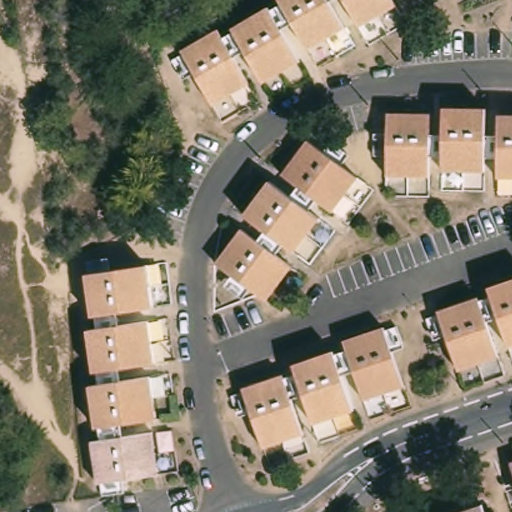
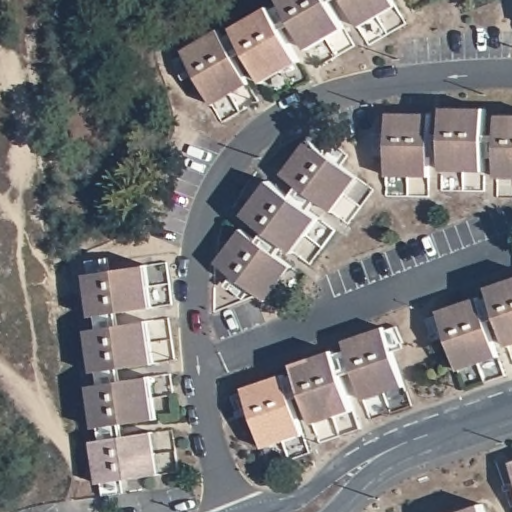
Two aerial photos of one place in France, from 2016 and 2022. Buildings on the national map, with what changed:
unchanged [(300,49),(272,0),(273,0),(321,0),(337,27),(340,31),(304,54),(300,49)]
unchanged [(351,27),(336,0),(385,0),(388,5),(391,11),(355,33),(351,27)]
unchanged [(258,89),(255,82),(225,33),(262,12),(292,61),(295,66),(258,89)]
unchanged [(207,110),(205,105),(175,56),(212,34),(241,83),(244,90),(207,110)]
unchanged [(437,176),(437,169),(437,114),(480,114),(480,169),(480,176),(437,176)]
unchanged [(381,182),(382,175),(381,120),(424,120),(425,175),(425,182),(381,182)]
unchanged [(492,176),(492,120),(512,120),(512,183),(492,183),(492,176)]
unchanged [(332,217),(327,214),(282,180),(307,146),(352,180),(357,184),(332,217)]
unchanged [(293,258),(288,254),(244,221),(270,187),(315,220),(320,225),(293,258)]
unchanged [(266,305),(261,302),(216,270),(242,235),(286,268),(291,272),(266,305)]
unchanged [(80,279),(135,272),(142,270),(149,313),(141,314),(85,321),(80,279)]
unchanged [(501,346),(482,294),(512,283),(512,350),(503,353),(501,346)]
unchanged [(453,377),(451,370),(432,317),(472,303),(490,356),(492,363),(453,377)]
unchanged [(82,335),(136,326),(144,325),(150,368),(142,369),(87,377),(82,335)]
unchanged [(380,394),(357,403),(338,342),(378,328),(396,382),(398,387),(380,394)]
unchanged [(306,420),(287,365),(328,351),(348,411),(328,418),(308,425),(306,420)]
unchanged [(258,450),(256,443),(236,388),(278,375),(296,429),(298,435),(258,450)]
unchanged [(84,390),(139,382),(146,381),(152,424),(145,425),(90,433),(84,390)]
unchanged [(86,446),(140,438),(147,437),(154,480),(147,480),(92,488),(86,446)]
unchanged [(512,466),(512,489),(505,469),(512,466)]
unchanged [(476,510),(477,512),(471,512),(476,510)]

